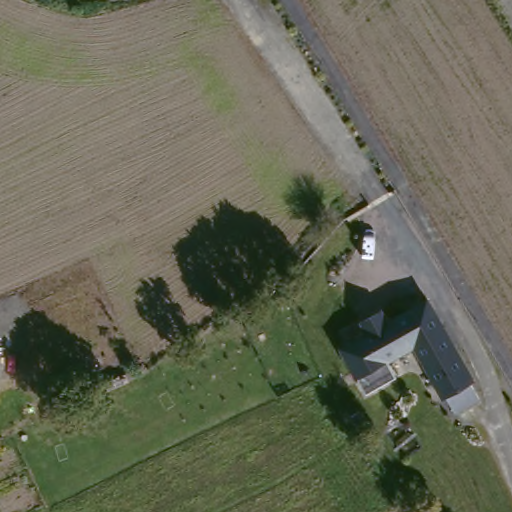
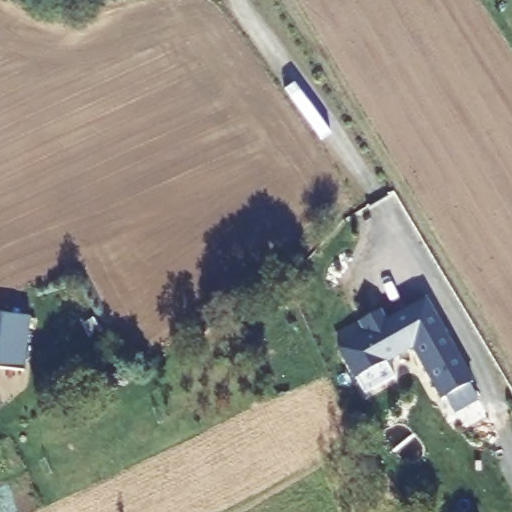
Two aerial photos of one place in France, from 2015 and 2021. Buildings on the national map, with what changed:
unchanged [(412,350),(387,363),(393,374),(361,392),(337,351),(362,335),(355,322),(381,308),(386,320),(428,297),(475,379),(439,398),(412,350)]
new [(2,314),(31,317),(25,371),(0,368),(0,326),(2,314)]

